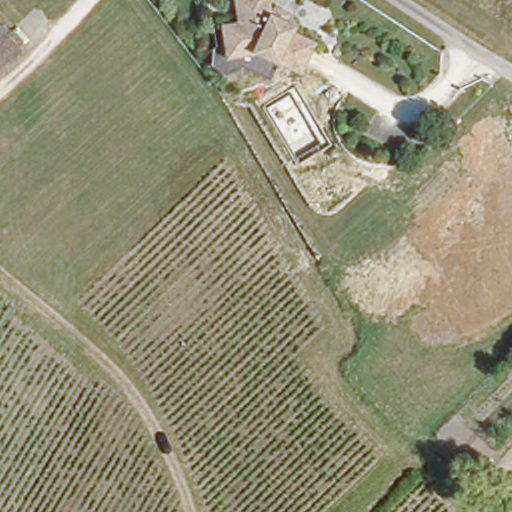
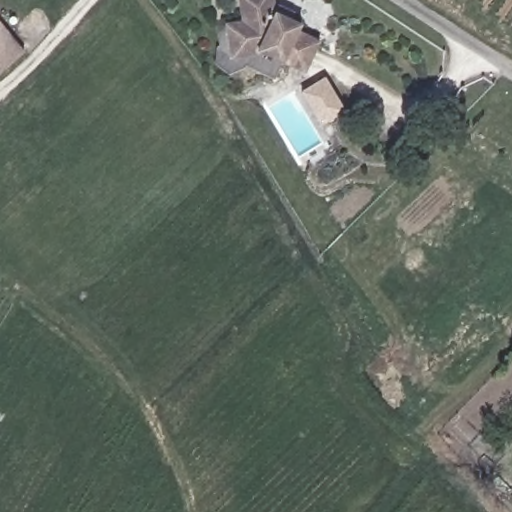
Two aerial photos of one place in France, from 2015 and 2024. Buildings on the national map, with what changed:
unchanged [(244,0),(278,0),(278,13),(303,21),(300,29),(321,36),(313,63),(268,49),(234,50),(234,17),(244,16),(244,0)]
unchanged [(0,70),(0,24),(23,52),(0,70)]

